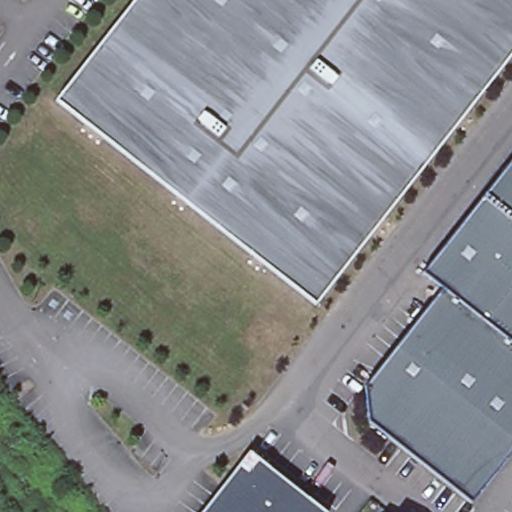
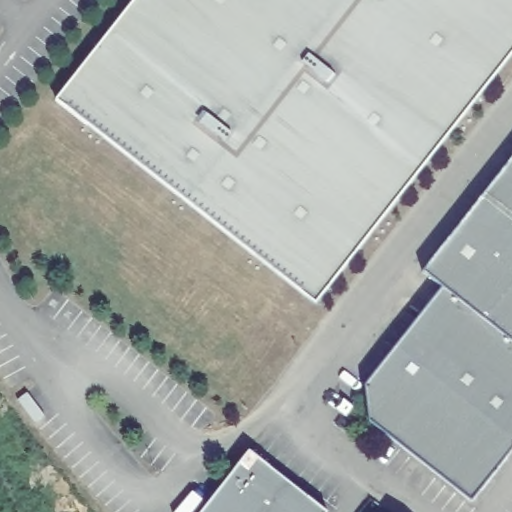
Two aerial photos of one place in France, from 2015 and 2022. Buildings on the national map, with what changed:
unchanged [(512,50),(313,305),(245,251),(147,172),(55,97),(131,0),(512,0),(512,50)]
unchanged [(433,473),(427,469),(408,453),(370,423),(365,387),(442,290),(422,274),(512,160),(512,454),(472,505),(433,473)]
unchanged [(328,512),(203,512),(248,451),(328,512)]

